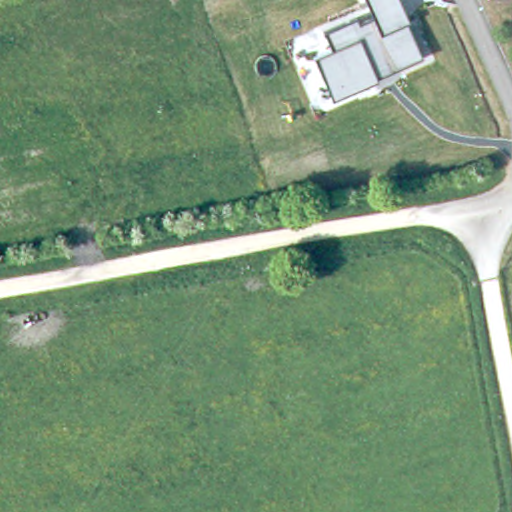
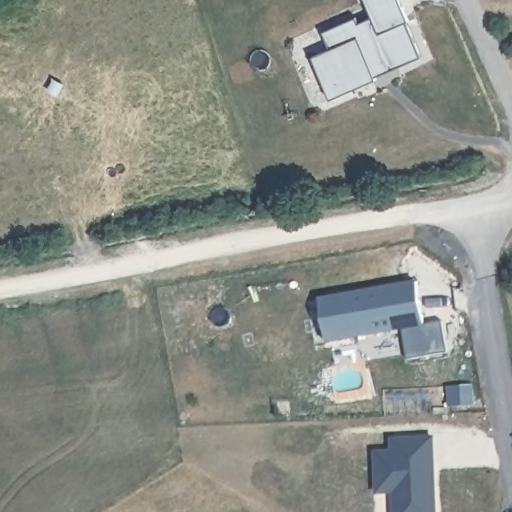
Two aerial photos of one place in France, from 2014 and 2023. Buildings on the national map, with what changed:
unchanged [(407,21),(422,54),(332,98),(314,54),(331,46),(326,29),(359,17),(359,20),(372,15),(367,0),(401,0),(410,20),(407,21)]
new [(417,280),(424,326),(327,344),(319,297),(417,280)]
new [(474,385),(474,404),(451,406),(449,387),(474,385)]
new [(396,510),(395,492),(379,493),(376,451),(398,450),(398,438),(433,436),(434,469),(433,469),(434,486),(436,486),(437,512),(396,512),(396,510)]

